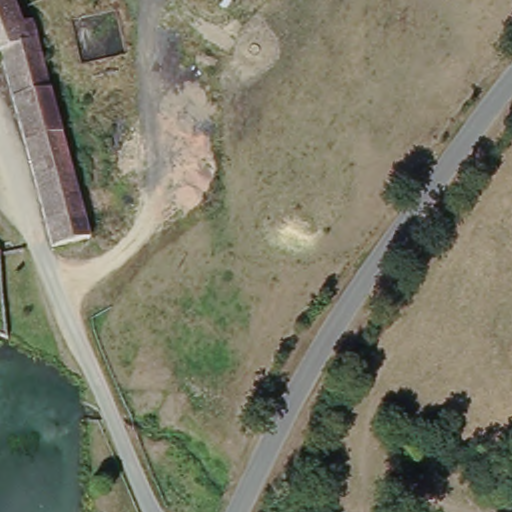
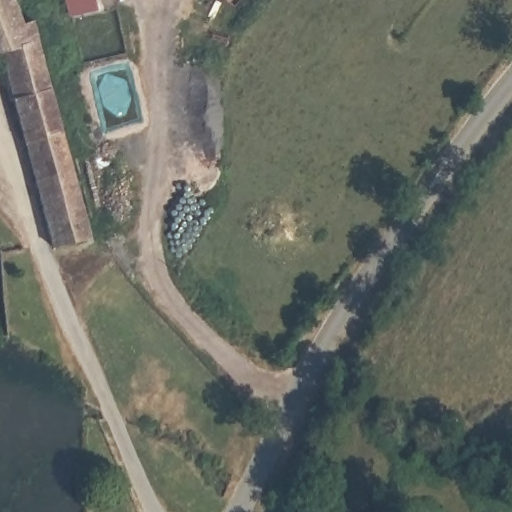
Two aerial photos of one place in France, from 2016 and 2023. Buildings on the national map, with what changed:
unchanged [(35,25),(67,143),(71,159),(91,234),(91,247),(92,255),(59,263),(9,64),(0,65),(0,0),(14,0),(24,28),(35,25)]
new [(67,17),(63,0),(93,0),(95,10),(67,17)]

